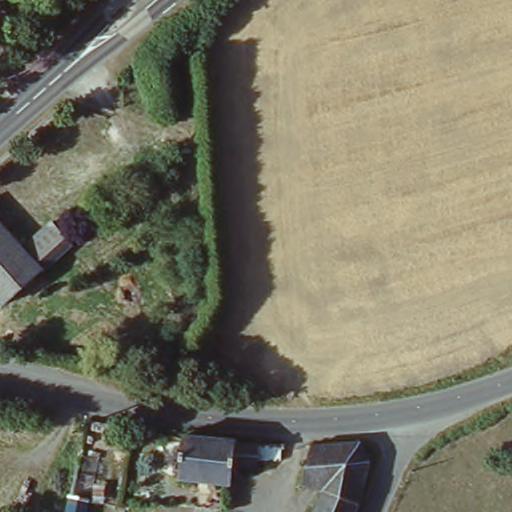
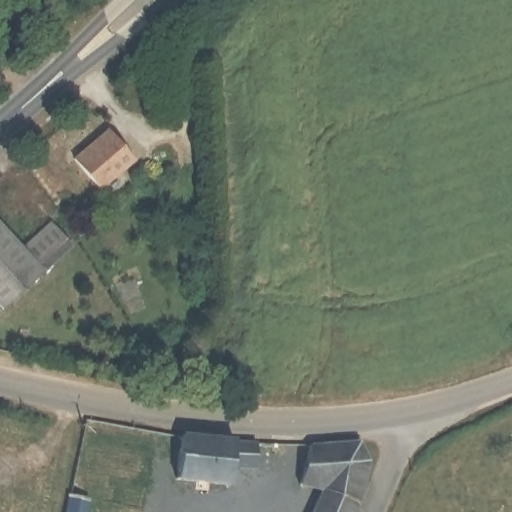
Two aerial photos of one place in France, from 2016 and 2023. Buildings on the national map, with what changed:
new [(73,157),(108,127),(135,159),(100,189),(73,157)]
unchanged [(45,230),(53,224),(74,243),(62,255),(8,308),(0,302),(0,221),(27,248),(45,230)]
unchanged [(250,466),(226,464),(224,484),(172,478),(175,435),(229,440),(229,442),(252,443),(250,466)]
unchanged [(319,489),(298,484),(305,445),(358,442),(367,460),(357,500),(352,512),(309,512),(319,489)]
unchanged [(94,500),(91,512),(71,512),(75,496),(94,500)]

